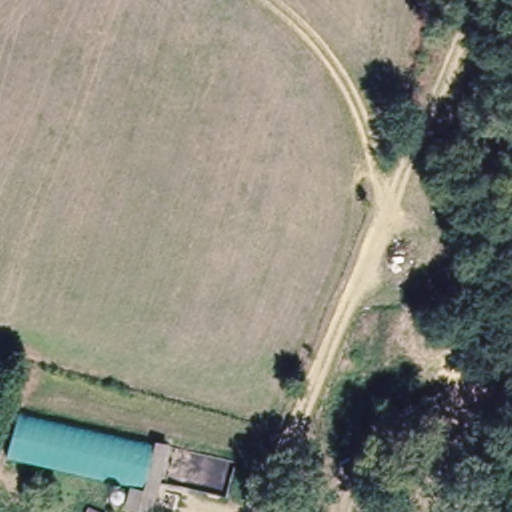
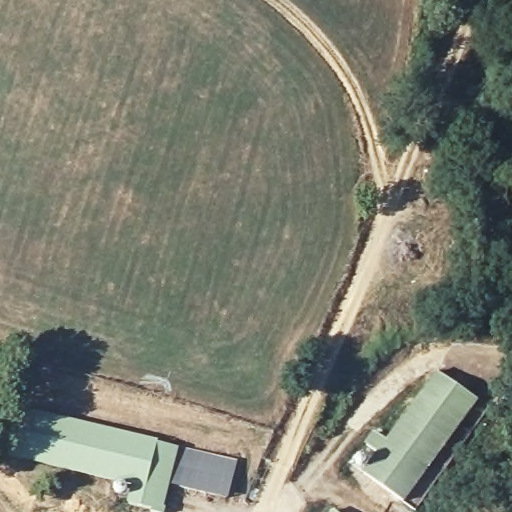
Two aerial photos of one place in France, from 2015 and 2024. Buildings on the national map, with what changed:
new [(436,371),(481,400),(404,503),(363,472),(377,452),(365,442),(373,430),(386,440),(436,371)]
unchanged [(20,412),(173,442),(160,510),(131,502),(134,485),(9,462),(20,412)]
new [(173,442),(238,457),(227,499),(165,485),(173,442)]
new [(335,512),(331,512),(333,510),(335,512)]

